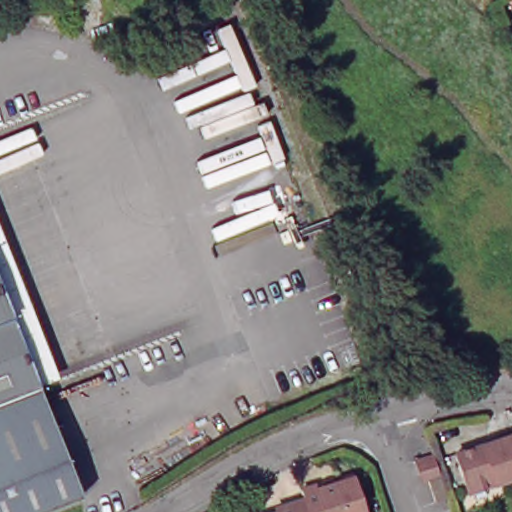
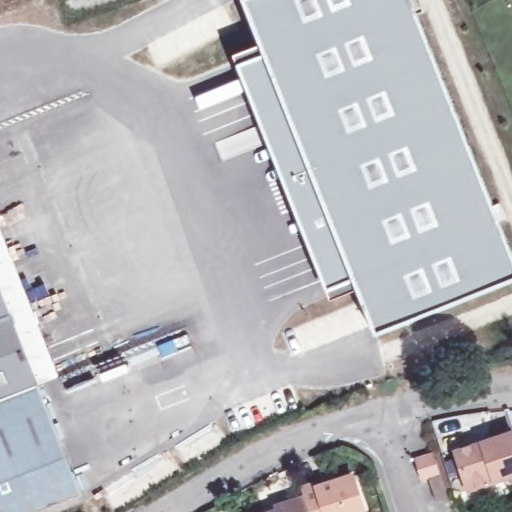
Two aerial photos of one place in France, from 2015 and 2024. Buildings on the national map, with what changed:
new [(512,288),(390,340),(362,290),(340,306),(242,70),(267,57),(252,10),(276,0),(413,0),(512,240),(512,288)]
unchanged [(41,512),(0,512),(0,284),(84,495),(41,512)]
unchanged [(460,453),(485,445),(497,441),(512,436),(512,480),(472,492),(460,453)]
unchanged [(412,458),(432,453),(436,469),(417,475),(412,458)]
unchanged [(432,495),(425,475),(437,471),(444,491),(432,495)]
unchanged [(319,512),(313,495),(310,486),(327,480),(329,485),(362,474),(374,512),(319,512)]
unchanged [(287,510),(286,503),(300,499),(313,495),(319,512),(280,512),(287,510)]

